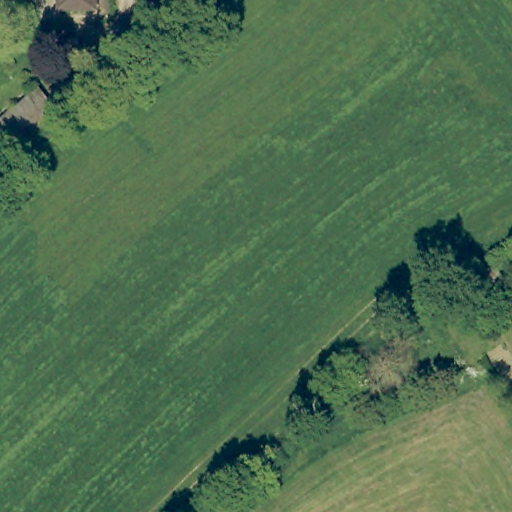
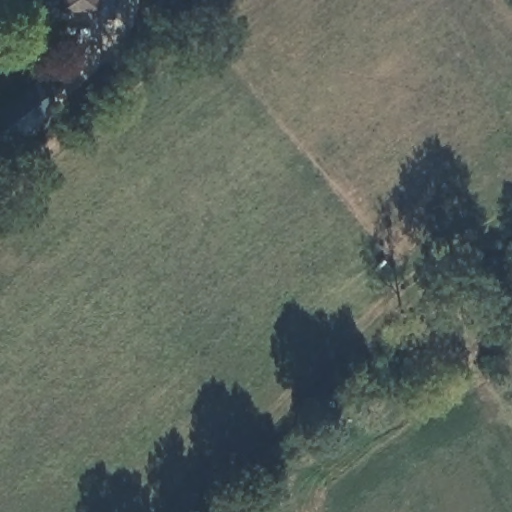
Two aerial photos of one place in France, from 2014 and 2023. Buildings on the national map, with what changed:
unchanged [(95,11),(59,11),(58,0),(95,0),(95,11)]
unchanged [(38,100),(54,119),(25,141),(0,161),(0,130),(10,122),(38,100)]

